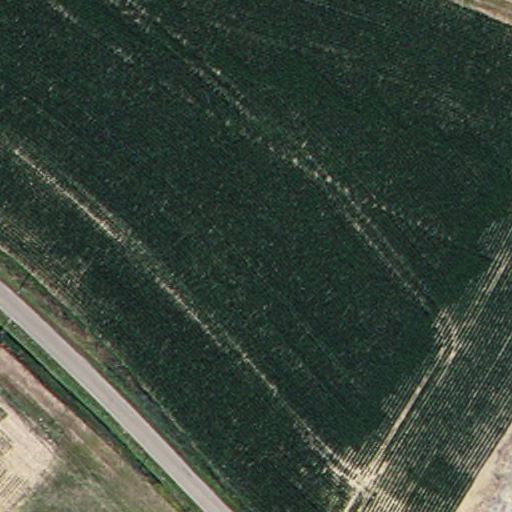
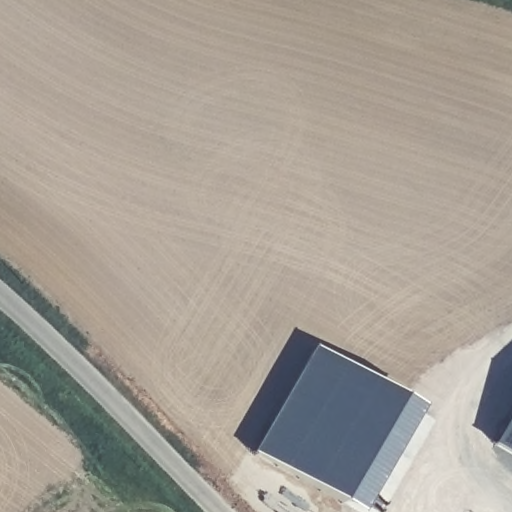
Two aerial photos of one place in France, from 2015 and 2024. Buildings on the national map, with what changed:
new [(316,348),(423,409),(364,512),(356,512),(254,454),(316,348)]
new [(494,443),(512,413),(512,453),(494,443)]

